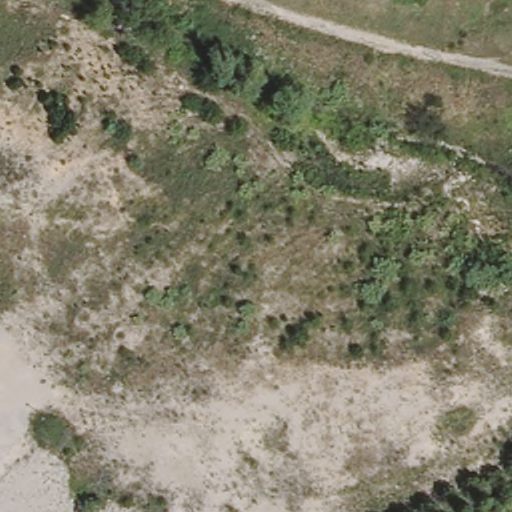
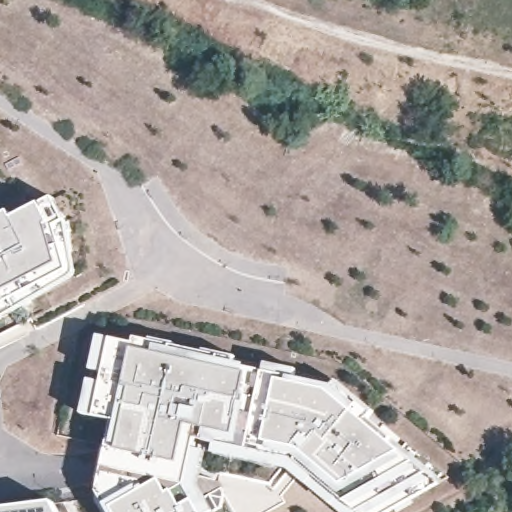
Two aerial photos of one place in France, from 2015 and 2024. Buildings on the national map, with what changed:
new [(14,219),(40,205),(55,198),(67,223),(76,272),(0,314),(0,216),(8,212),(14,219)]
new [(136,344),(137,338),(159,344),(158,347),(249,366),(288,376),(282,380),(330,391),(401,452),(437,481),(386,512),(340,512),(292,469),(211,455),(215,438),(197,435),(194,449),(205,452),(198,485),(213,512),(113,512),(112,509),(98,487),(115,420),(95,415),(111,337),(136,344)]
new [(59,512),(0,512),(0,509),(55,503),(59,512)]

